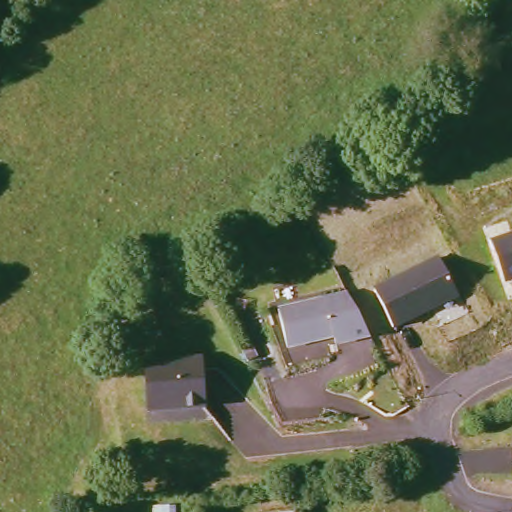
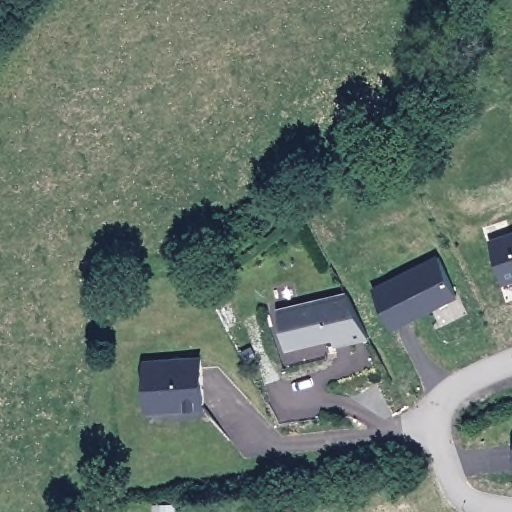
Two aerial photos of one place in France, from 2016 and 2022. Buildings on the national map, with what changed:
unchanged [(512,234),(512,278),(506,279),(493,240),(512,234)]
unchanged [(439,257),(457,290),(433,304),(435,307),(396,328),(376,291),(439,257)]
unchanged [(334,293),(348,289),(371,330),(330,342),(328,334),(282,346),(272,309),(334,293)]
unchanged [(147,404),(144,364),(197,359),(202,407),(169,410),(148,412),(147,404)]
unchanged [(511,461),(512,440),(512,461),(511,461)]

